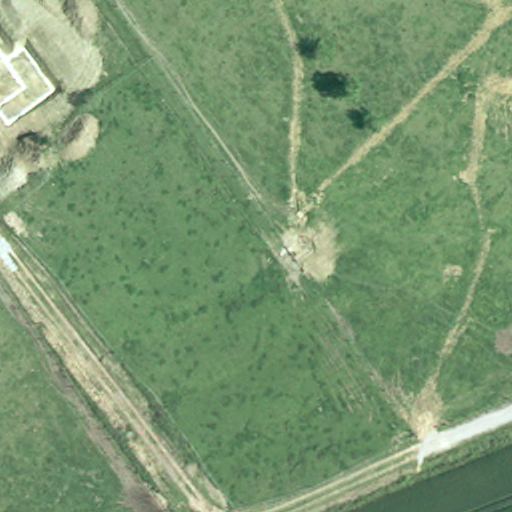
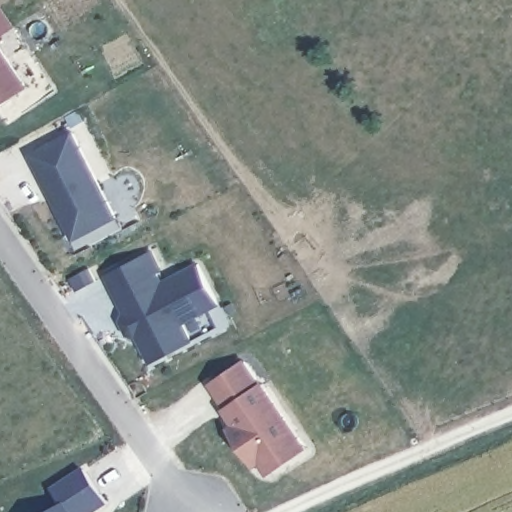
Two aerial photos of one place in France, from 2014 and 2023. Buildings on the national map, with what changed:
unchanged [(29,87),(0,106),(0,46),(29,87)]
new [(118,218),(74,240),(28,152),(72,130),(118,218)]
new [(138,337),(127,336),(119,321),(124,313),(105,274),(153,252),(165,277),(198,262),(218,305),(184,322),(194,341),(150,363),(138,337)]
new [(309,448),(269,476),(261,465),(256,468),(228,427),(232,424),(220,407),(223,406),(208,383),(245,358),(309,448)]
new [(109,504),(97,512),(56,512),(65,506),(53,487),(84,467),(109,504)]

